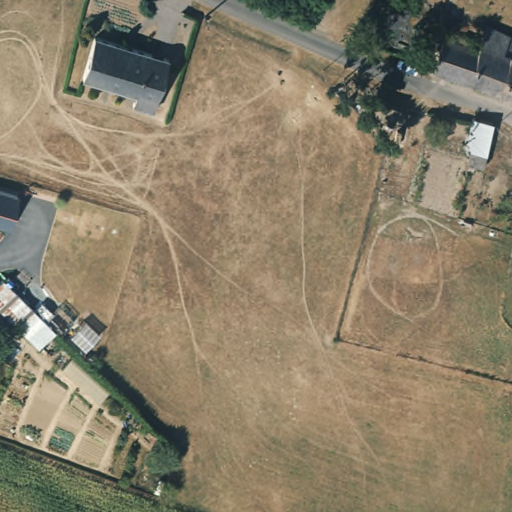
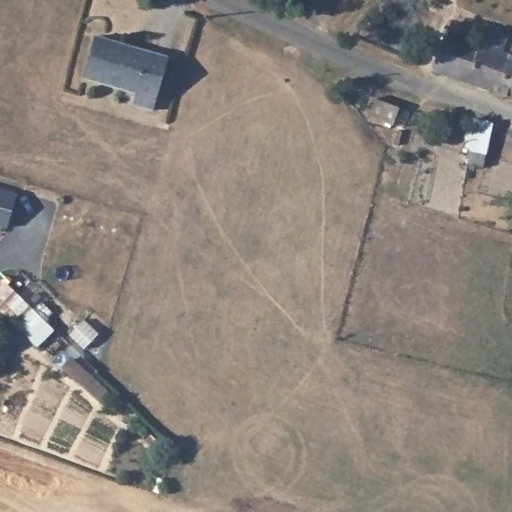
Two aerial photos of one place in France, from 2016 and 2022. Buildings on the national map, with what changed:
unchanged [(512,34),(512,52),(510,52),(499,87),(434,65),(444,34),(477,44),(484,25),(512,34)]
unchanged [(85,80),(92,41),(105,42),(166,52),(157,105),(135,102),(137,89),(95,82),(85,80)]
unchanged [(512,52),(512,91),(499,87),(510,52),(512,52)]
unchanged [(399,107),(392,122),(367,111),(374,97),(399,107)]
unchanged [(491,121),(491,122),(481,162),(466,159),(468,147),(463,145),(465,137),(471,116),(491,121)]
unchanged [(15,194),(5,227),(0,225),(0,189),(15,194)]
unchanged [(54,329),(36,347),(0,312),(0,284),(3,281),(54,329)]

